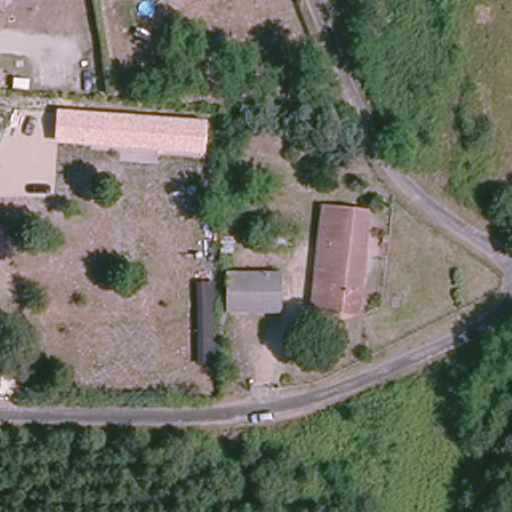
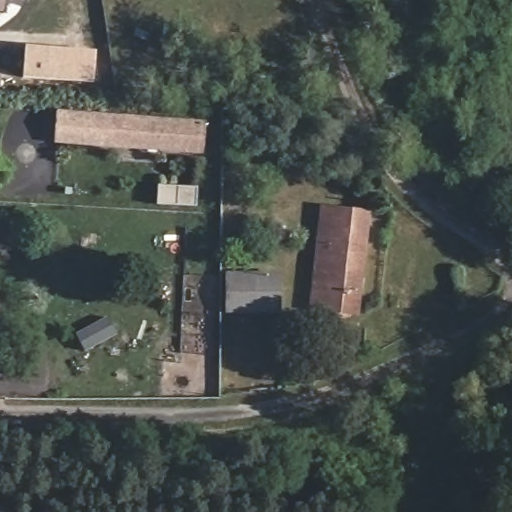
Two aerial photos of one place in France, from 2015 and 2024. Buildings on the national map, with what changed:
new [(96,49),(93,81),(24,76),(26,44),(96,49)]
unchanged [(0,68),(3,68),(1,87),(0,87),(0,68)]
unchanged [(55,143),(57,109),(207,120),(204,154),(55,143)]
unchanged [(365,219),(362,300),(316,299),(321,218),(365,219)]
unchanged [(294,245),(264,245),(264,231),(292,230),(294,245)]
unchanged [(227,270),(280,267),(281,302),(228,305),(227,270)]

